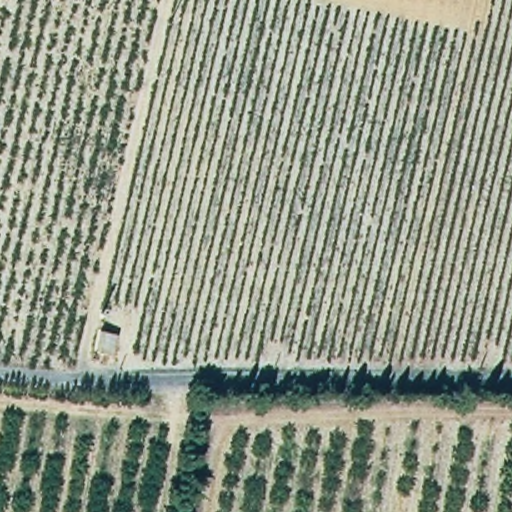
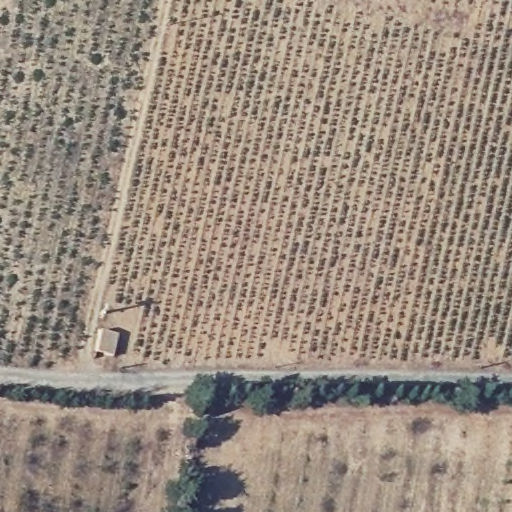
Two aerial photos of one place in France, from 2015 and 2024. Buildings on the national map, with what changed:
unchanged [(122,331),(118,354),(94,349),(99,325),(122,331)]

